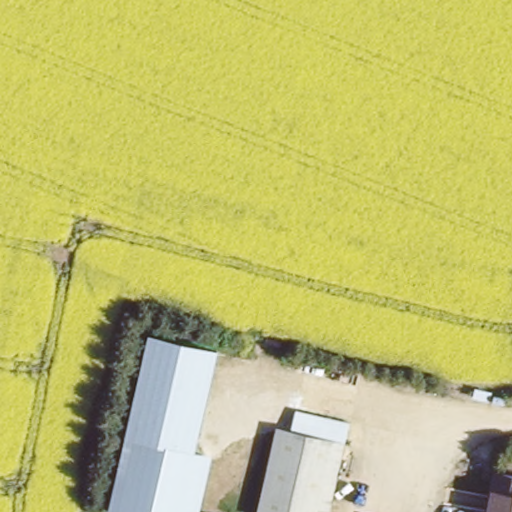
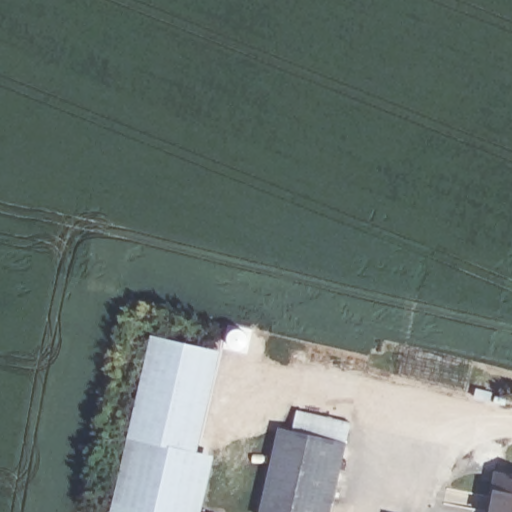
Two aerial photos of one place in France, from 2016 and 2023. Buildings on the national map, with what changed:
unchanged [(147,336),(196,346),(177,444),(128,434),(147,336)]
unchanged [(287,427),(292,407),(351,418),(341,467),(270,448),(275,424),(287,427)]
unchanged [(196,448),(183,512),(134,512),(113,508),(128,434),(177,444),(196,448)]
unchanged [(270,448),(341,467),(331,512),(258,512),(270,448)]
unchanged [(496,470),(512,473),(512,512),(487,512),(496,470)]

